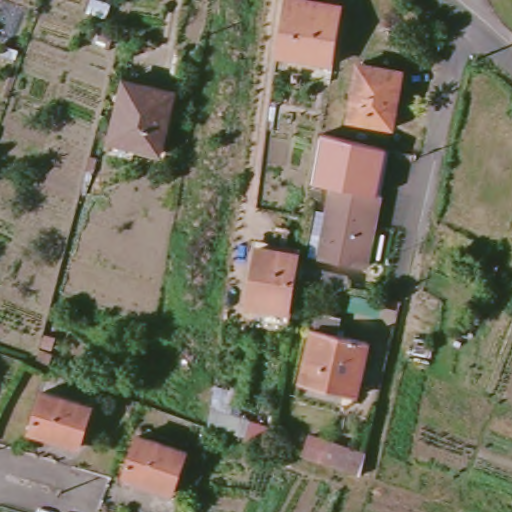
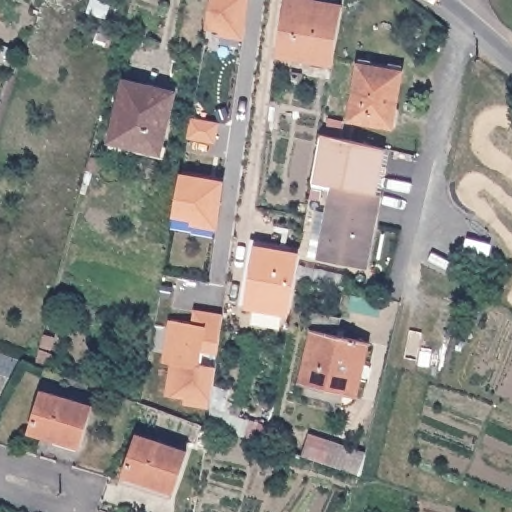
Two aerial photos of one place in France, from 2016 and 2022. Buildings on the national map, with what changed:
new [(250,0),(249,5),(245,41),(223,37),(224,34),(206,30),(212,0),(236,0),(250,0)]
unchanged [(282,4),(302,6),(303,2),(339,7),(330,58),(276,49),(282,4)]
unchanged [(350,119),(359,64),(403,72),(393,127),(350,119)]
unchanged [(111,141),(125,80),(176,92),(161,154),(111,141)]
new [(191,119),(218,123),(214,142),(188,137),(191,119)]
unchanged [(324,136),(339,139),(333,173),(318,170),(324,136)]
new [(209,179),(219,180),(216,195),(211,231),(187,227),(188,222),(173,220),(181,174),(209,179)]
unchanged [(334,186),(377,195),(363,267),(319,258),(334,186)]
unchanged [(296,278),(293,300),(291,312),(249,305),(259,247),(301,255),(296,278)]
new [(196,322),(197,310),(207,311),(226,314),(214,403),(189,400),(189,395),(171,392),(176,361),(167,360),(173,319),(196,322)]
unchanged [(301,382),(313,330),(309,329),(313,312),(341,318),(339,335),(369,342),(357,395),(301,382)]
unchanged [(31,431),(43,392),(91,407),(80,446),(31,431)]
unchanged [(271,445),(248,439),(206,426),(211,406),(249,418),(276,428),(271,445)]
unchanged [(138,430),(186,446),(174,485),(171,495),(123,478),(126,470),(138,430)]
unchanged [(351,470),(313,457),(319,437),(356,448),(351,470)]

